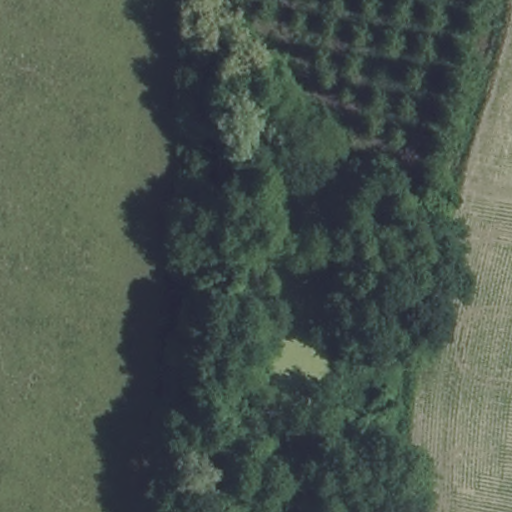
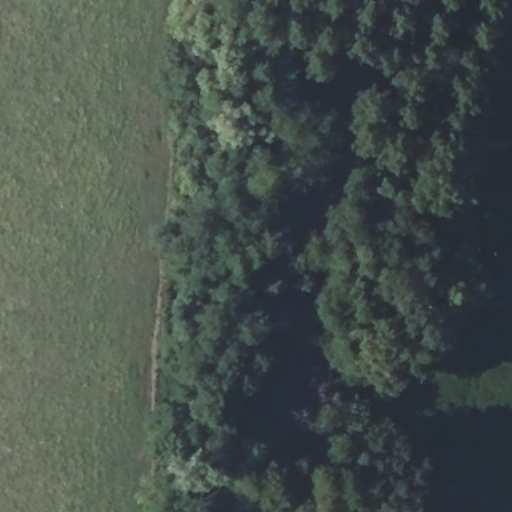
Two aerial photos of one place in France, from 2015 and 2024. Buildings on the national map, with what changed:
[]

